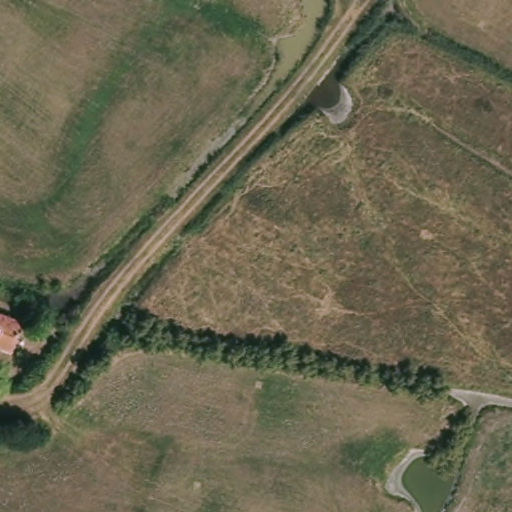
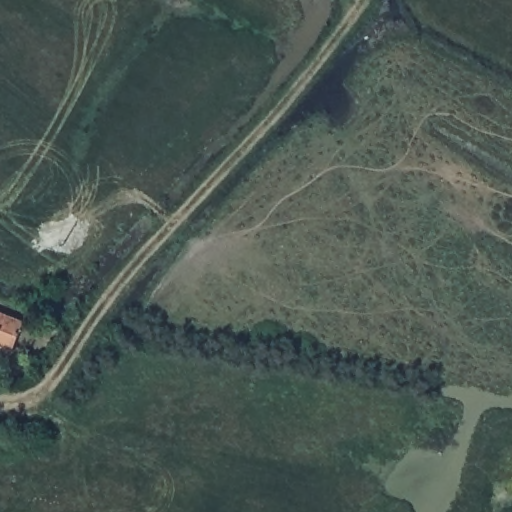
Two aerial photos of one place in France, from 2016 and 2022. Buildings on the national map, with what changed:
unchanged [(27,323),(19,347),(10,342),(5,351),(0,349),(0,312),(27,323)]
unchanged [(5,359),(14,362),(12,368),(1,367),(5,359)]

